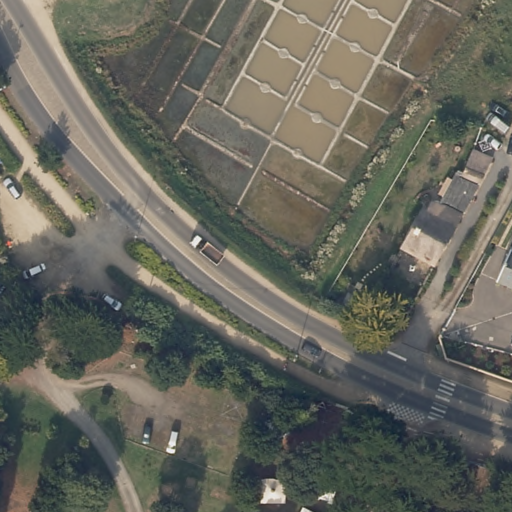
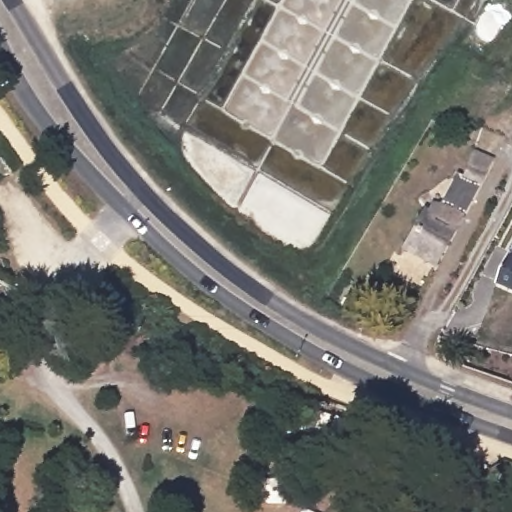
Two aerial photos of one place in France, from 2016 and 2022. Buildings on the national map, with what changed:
unchanged [(457,179),(463,181),(470,166),(470,165),(474,156),(495,165),(465,219),(446,207),(440,207),(448,194),(457,179)]
unchanged [(427,213),(429,209),(430,209),(439,210),(440,207),(446,207),(465,219),(436,271),(401,252),(421,214),(426,216),(427,213)]
unchanged [(512,252),(512,288),(499,282),(512,252)]

